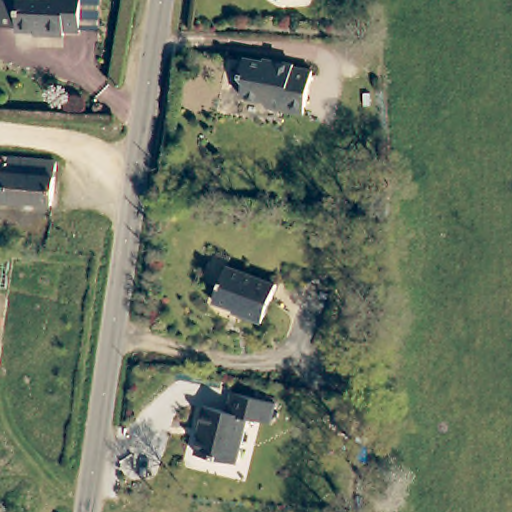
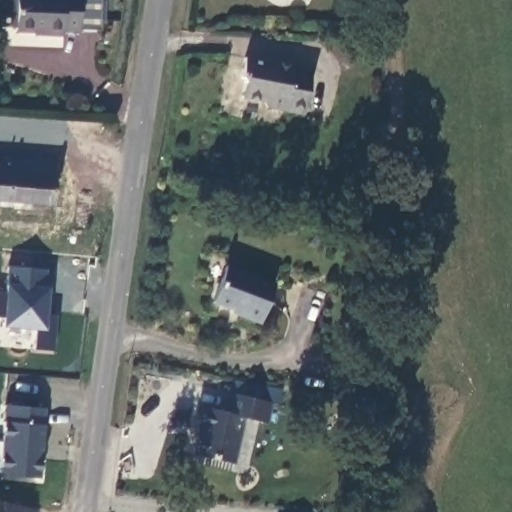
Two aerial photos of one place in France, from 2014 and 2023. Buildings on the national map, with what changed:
unchanged [(11,0),(93,0),(92,33),(77,33),(76,38),(28,35),(29,30),(9,29),(11,0)]
unchanged [(308,111),(273,106),(265,98),(247,96),(249,78),(245,75),(247,56),(277,60),(277,58),(298,61),(297,66),(315,68),(308,111)]
unchanged [(340,180),(342,159),(358,160),(357,181),(340,180)]
unchanged [(54,206),(0,202),(0,161),(57,165),(54,206)]
unchanged [(370,245),(355,245),(355,233),(369,233),(370,245)]
new [(36,351),(40,331),(2,327),(3,318),(0,318),(0,292),(4,292),(5,282),(9,282),(9,267),(51,271),(49,287),(47,312),(58,314),(53,352),(36,351)]
unchanged [(228,267),(276,285),(261,326),(238,317),(240,312),(214,303),(228,267)]
unchanged [(268,425),(246,420),(234,465),(195,455),(201,433),(198,433),(203,410),(224,414),(229,394),(273,405),(268,425)]
new [(40,478),(0,476),(6,405),(46,407),(40,478)]

